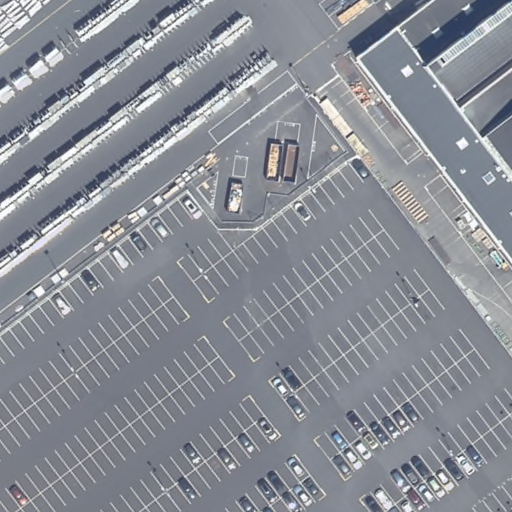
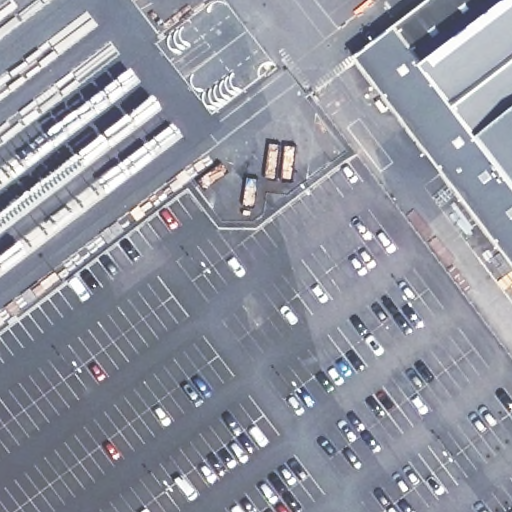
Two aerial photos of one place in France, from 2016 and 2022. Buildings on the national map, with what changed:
unchanged [(512,0),(512,257),(463,193),(355,53),(425,0),(512,0)]

